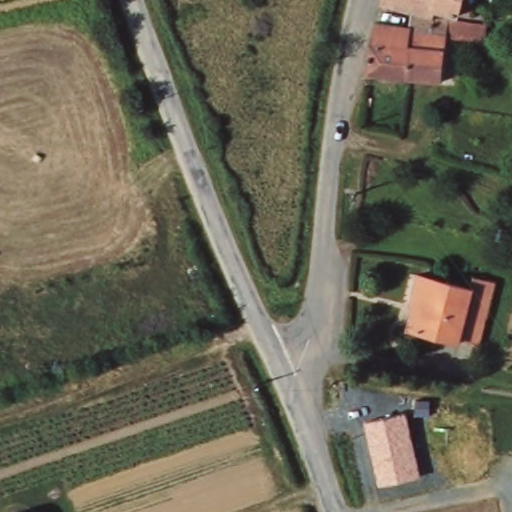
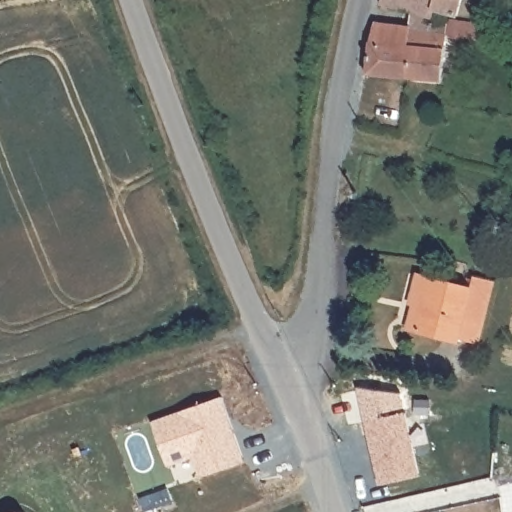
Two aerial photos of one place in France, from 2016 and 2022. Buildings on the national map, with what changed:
unchanged [(414,30),(415,26),(415,10),(381,5),(383,0),(462,0),(460,12),(458,21),(491,25),(487,48),(470,45),(454,41),(445,83),(411,79),(414,30)]
unchanged [(415,26),(414,30),(411,79),(372,78),(379,21),(415,26)]
unchanged [(463,344),(408,333),(415,306),(412,305),(419,272),(476,288),(477,277),(499,281),(482,349),(463,344)]
new [(221,397),(228,418),(220,421),(225,436),(233,433),(243,462),(199,477),(192,457),(166,467),(151,422),(221,397)]
unchanged [(420,477),(379,486),(365,420),(406,411),(420,477)]
unchanged [(11,511),(20,510),(25,512),(10,512),(11,511)]

